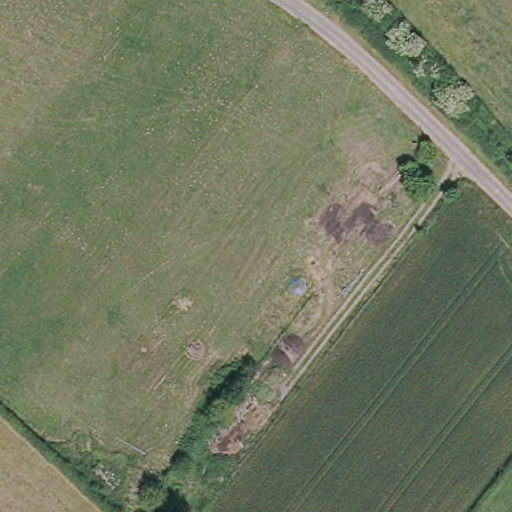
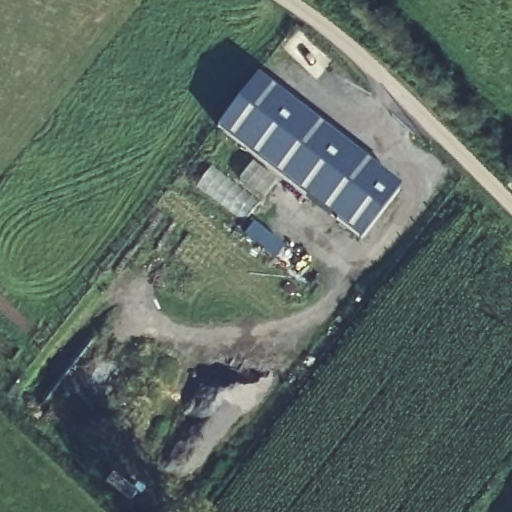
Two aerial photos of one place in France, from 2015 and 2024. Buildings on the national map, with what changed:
new [(256,76),(397,189),(359,238),(217,125),(256,76)]

